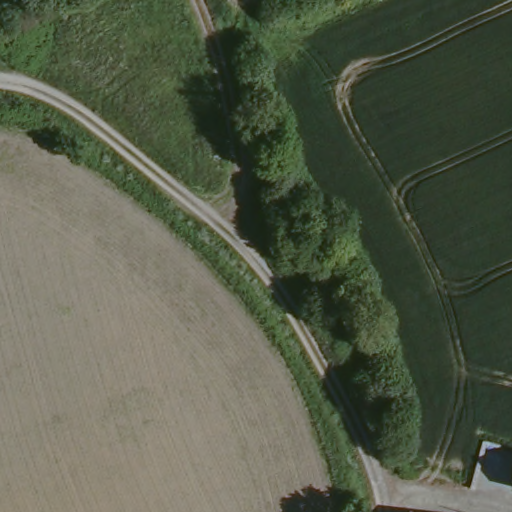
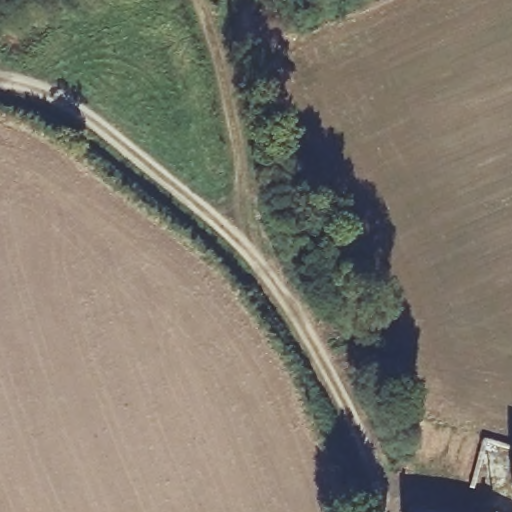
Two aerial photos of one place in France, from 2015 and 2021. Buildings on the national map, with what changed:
unchanged [(433,512),(410,512),(410,507),(415,509),(433,512)]

